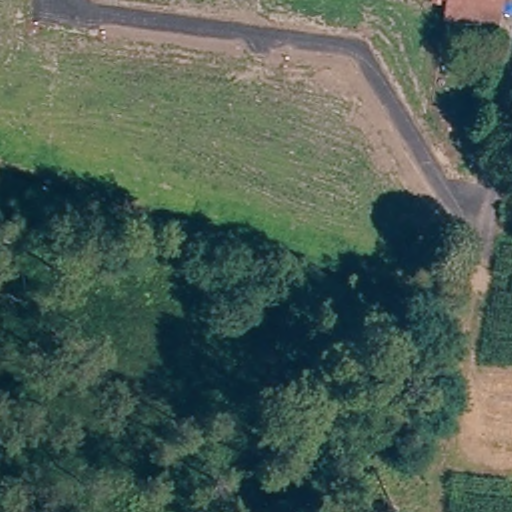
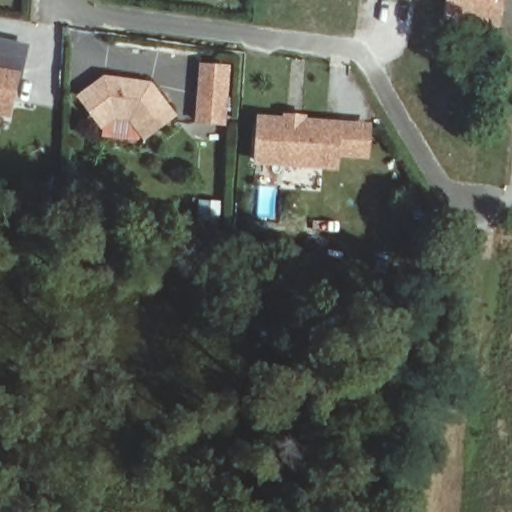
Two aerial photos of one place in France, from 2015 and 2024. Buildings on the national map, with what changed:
unchanged [(448,0),(507,0),(501,32),(445,18),(448,0)]
new [(30,49),(24,78),(20,77),(15,102),(12,116),(0,114),(0,42),(30,49)]
new [(195,124),(199,62),(232,65),(227,128),(195,124)]
new [(76,98),(104,75),(153,83),(179,117),(144,143),(129,123),(115,121),(102,132),(76,98)]
new [(258,115),(283,117),(283,113),(308,115),(308,119),(373,124),(370,160),(340,158),(339,170),(254,166),(258,115)]

